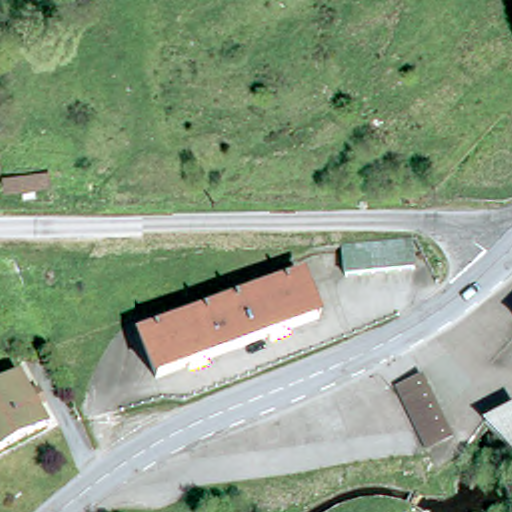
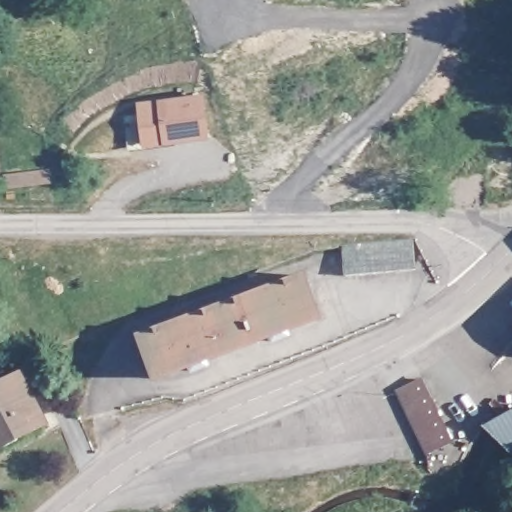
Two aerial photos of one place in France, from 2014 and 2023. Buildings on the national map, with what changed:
new [(205,92),(210,136),(142,145),(135,102),(205,92)]
unchanged [(48,184),(4,189),(2,175),(46,170),(48,184)]
unchanged [(347,276),(341,240),(378,241),(410,241),(413,270),(402,271),(347,276)]
unchanged [(322,325),(290,336),(292,342),(274,350),(272,343),(210,366),(212,371),(195,378),(192,372),(160,384),(144,342),(307,282),(322,325)]
unchanged [(42,390),(50,405),(40,410),(51,430),(0,458),(0,392),(23,380),(32,395),(42,390)]
unchanged [(432,404),(452,446),(425,460),(396,397),(424,386),(432,404)]
unchanged [(487,431),(512,416),(512,457),(487,431)]

